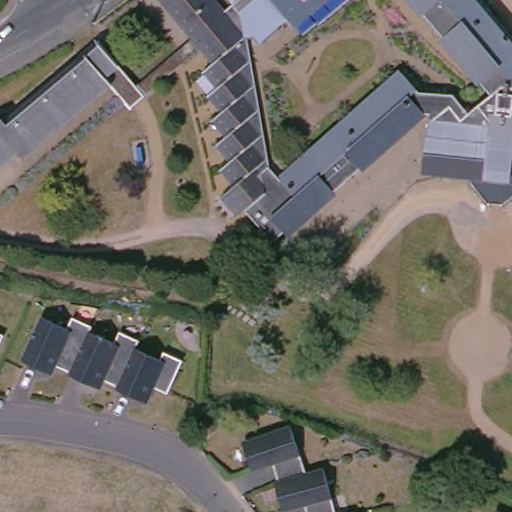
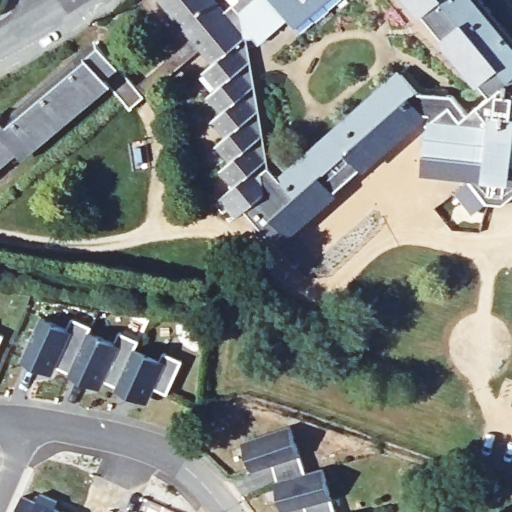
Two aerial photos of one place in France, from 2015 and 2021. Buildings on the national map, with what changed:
unchanged [(284,19),(257,41),(254,38),(244,39),(263,153),(266,167),(276,178),(399,74),(416,94),(441,96),(424,110),(416,117),(381,147),(368,159),(334,188),(319,200),(306,211),(286,228),(276,237),(251,208),(243,214),(239,209),(236,213),(222,196),(231,189),(217,172),(227,164),(213,147),(222,139),(209,123),(219,114),(206,97),(215,89),(201,74),(212,63),(198,49),(189,39),(156,0),(209,0),(221,14),(231,8),(225,0),(323,0),(291,26),(284,19)]
unchanged [(475,0),(509,39),(469,73),(409,0),(475,0)]
unchanged [(179,65),(162,80),(127,110),(104,84),(17,157),(12,151),(0,161),(0,119),(1,119),(94,42),(134,86),(189,39),(198,49),(179,65)]
unchanged [(509,39),(512,44),(512,53),(512,54),(512,92),(511,94),(512,95),(512,177),(478,175),(466,186),(454,172),(440,182),(417,156),(422,154),(424,136),(421,134),(434,123),(418,123),(414,125),(404,134),(293,232),(291,229),(278,240),(276,237),(286,228),(306,211),(319,200),(334,188),(368,159),(381,147),(416,117),(424,110),(441,96),(452,98),(467,116),(489,97),(477,81),(469,73),(509,39)]
unchanged [(48,309),(73,324),(79,313),(98,324),(94,329),(119,343),(124,332),(143,343),(137,354),(161,368),(167,357),(185,367),(167,399),(150,389),(143,402),(101,377),(97,383),(54,358),(52,364),(26,349),(48,309)]
unchanged [(0,366),(0,340),(9,344),(0,366)]
unchanged [(310,506),(288,512),(280,481),(283,481),(277,464),(256,471),(246,442),(294,426),(311,473),(329,469),(339,512),(311,512),(310,506)]
new [(24,499),(39,506),(43,497),(60,504),(57,511),(59,512),(18,512),(24,499)]

